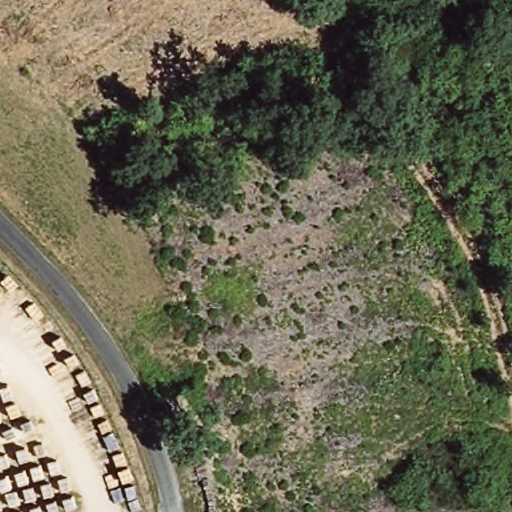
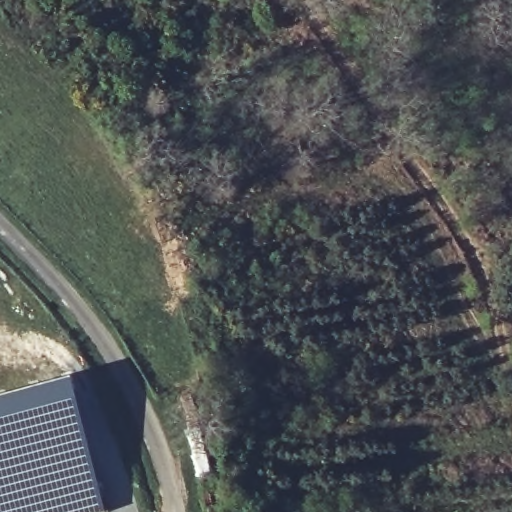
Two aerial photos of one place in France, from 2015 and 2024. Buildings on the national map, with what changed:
new [(76,382),(109,512),(0,512),(0,402),(76,382)]

